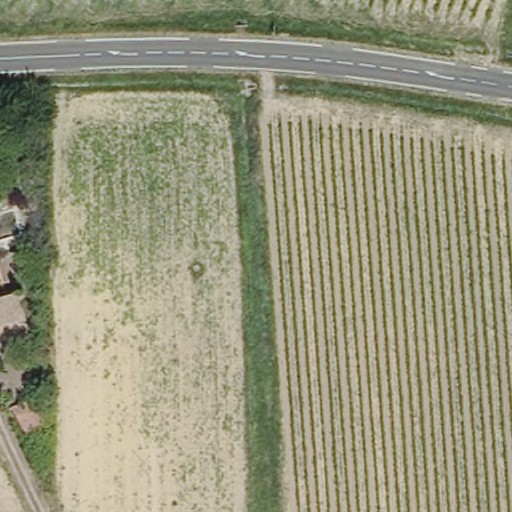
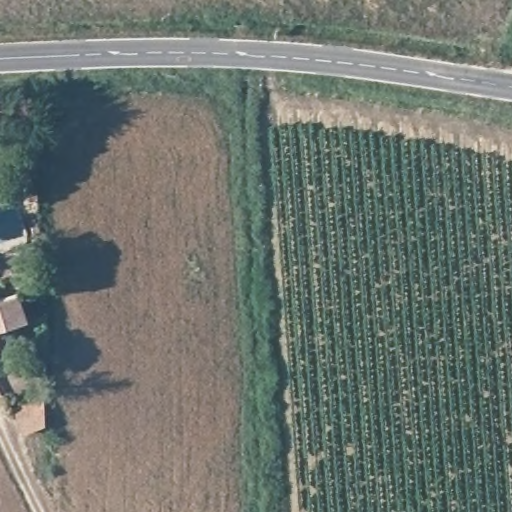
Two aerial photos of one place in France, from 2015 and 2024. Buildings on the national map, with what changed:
unchanged [(31,316),(0,328),(0,301),(22,294),(31,316)]
unchanged [(22,438),(16,421),(15,419),(11,412),(48,396),(48,406),(49,430),(22,438)]

